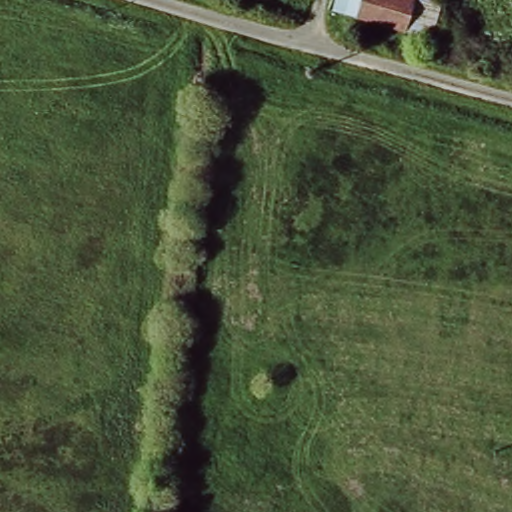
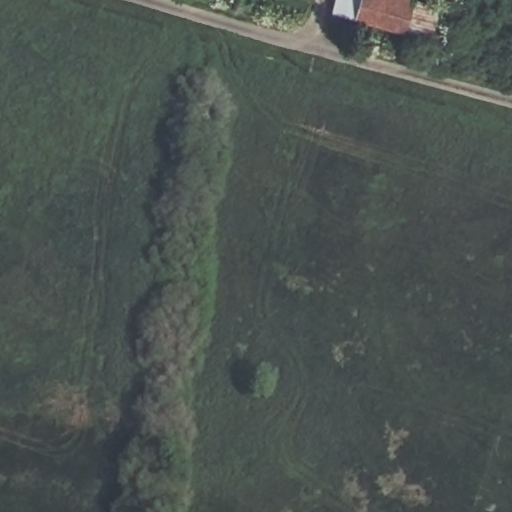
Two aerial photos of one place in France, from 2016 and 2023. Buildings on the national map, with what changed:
unchanged [(450,4),(441,41),(335,14),(339,0),(431,0),(450,4)]

